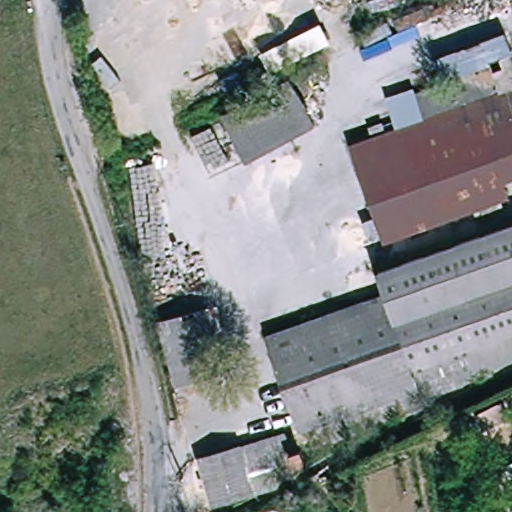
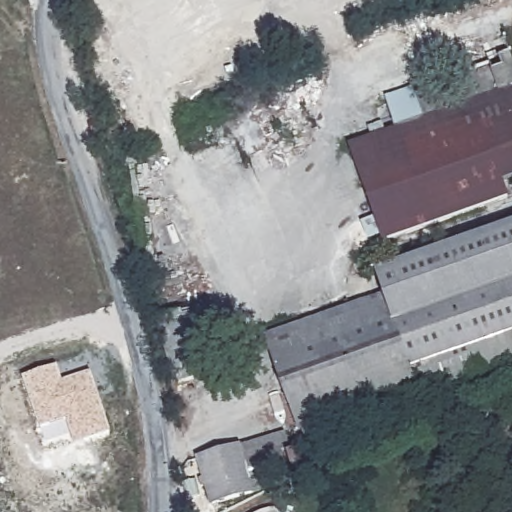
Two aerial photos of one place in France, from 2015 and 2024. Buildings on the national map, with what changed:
unchanged [(507,184),(509,200),(387,243),(352,145),(402,128),(392,100),(414,91),(416,95),(494,67),(486,45),(509,37),(512,46),(512,182),(507,184)]
unchanged [(318,122),(251,162),(225,118),(291,78),(318,122)]
unchanged [(494,367),(496,372),(488,376),(485,370),(465,382),(427,397),(427,401),(411,410),(335,437),(328,417),(304,426),(270,333),(389,291),(381,269),(506,225),(512,223),(512,359),(494,367)]
unchanged [(203,310),(221,371),(176,383),(159,321),(203,310)]
new [(58,367),(63,382),(91,372),(112,433),(76,446),(67,421),(40,430),(23,378),(58,367)]
unchanged [(212,505),(198,458),(285,435),(289,451),(281,453),(285,465),(272,468),(278,487),(276,488),(212,505)]
unchanged [(300,453),(303,464),(291,467),(289,456),(300,453)]

